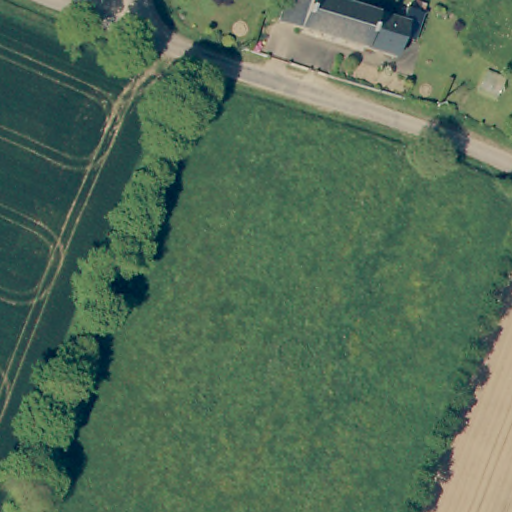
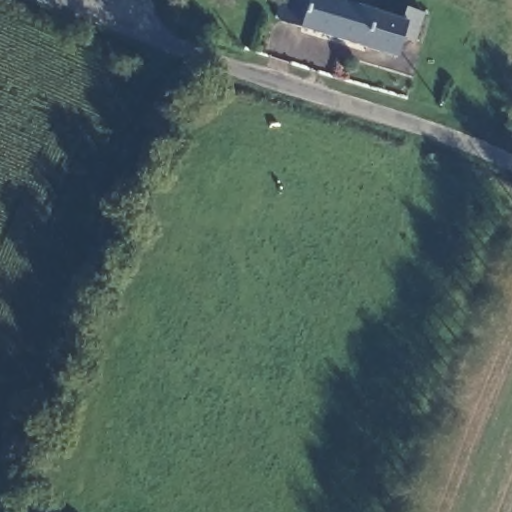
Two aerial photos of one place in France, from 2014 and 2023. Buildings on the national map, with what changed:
unchanged [(346,0),(397,16),(401,4),(419,9),(410,36),(398,33),(391,53),(275,17),(280,0),(346,0)]

